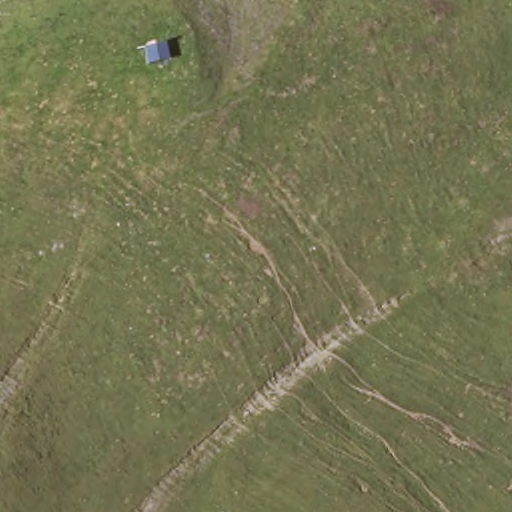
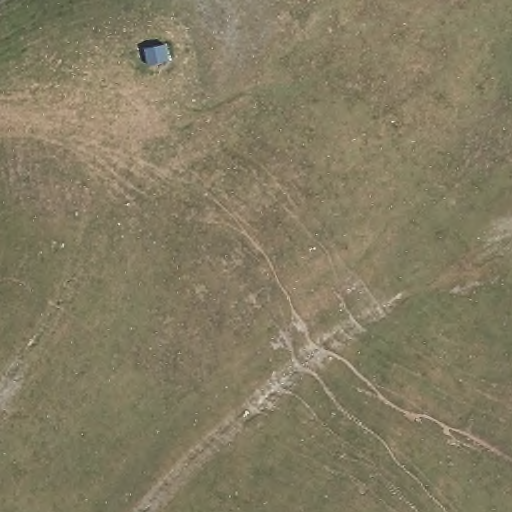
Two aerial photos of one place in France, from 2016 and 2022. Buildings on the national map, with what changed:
unchanged [(169,44),(171,62),(150,66),(148,47),(169,44)]

